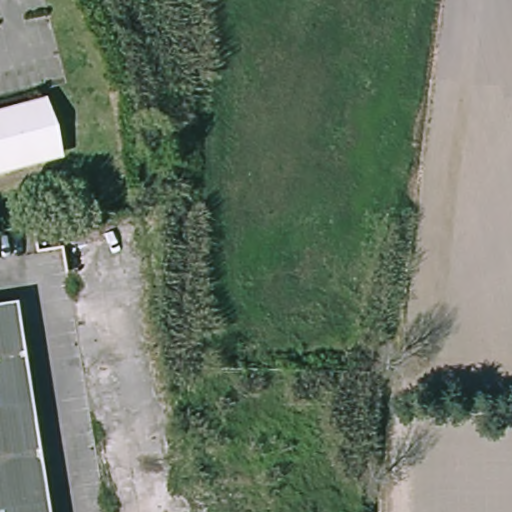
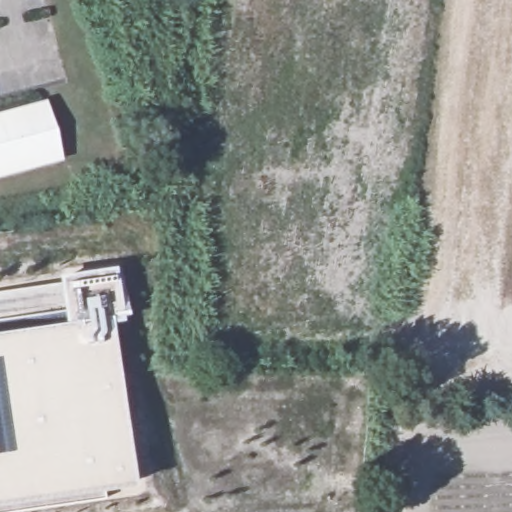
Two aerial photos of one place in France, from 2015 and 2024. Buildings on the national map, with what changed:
unchanged [(53,108),(67,159),(0,176),(0,121),(53,108)]
new [(66,322),(59,274),(115,265),(122,299),(127,299),(130,314),(123,315),(124,321),(114,322),(137,483),(0,504),(0,331),(66,322)]
demolished [(23,316),(54,512),(0,512),(0,320),(23,316)]

